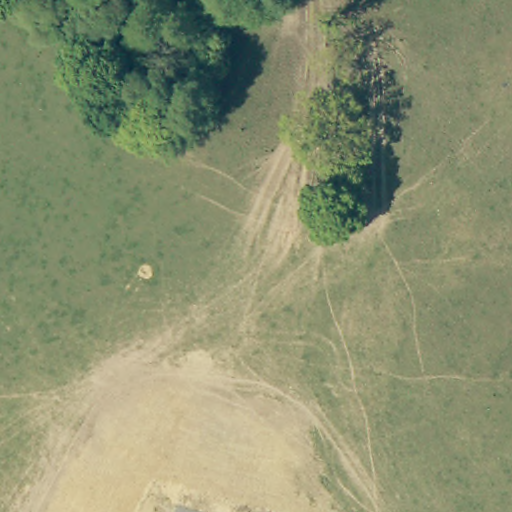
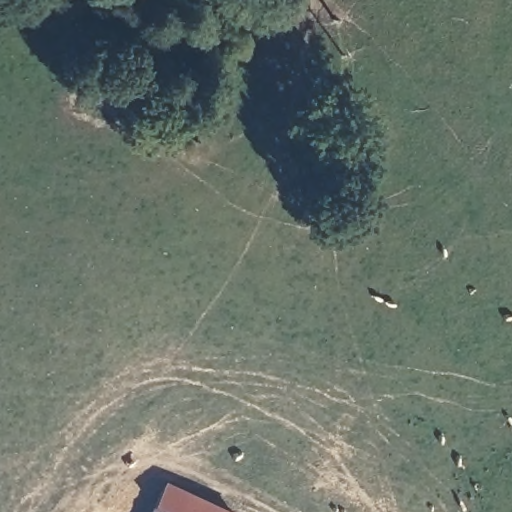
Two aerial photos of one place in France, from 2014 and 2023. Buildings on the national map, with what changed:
new [(167,487),(222,512),(155,512),(167,487)]

